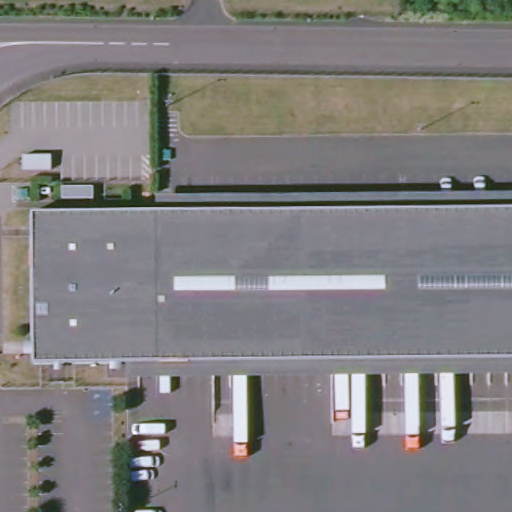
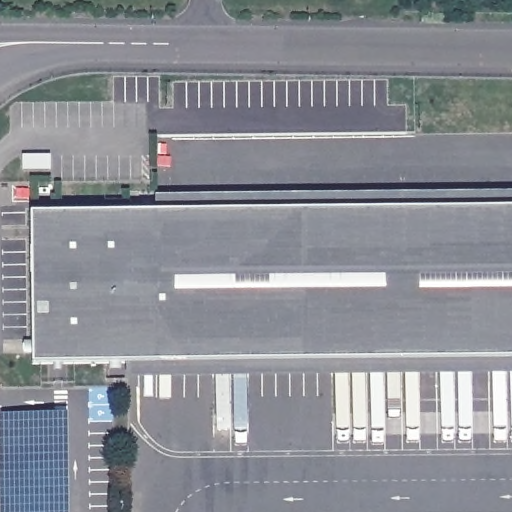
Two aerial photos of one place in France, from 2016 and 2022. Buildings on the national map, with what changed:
unchanged [(512,207),(512,358),(35,363),(34,212),(512,207)]
new [(67,414),(69,512),(0,512),(0,414),(67,414)]

